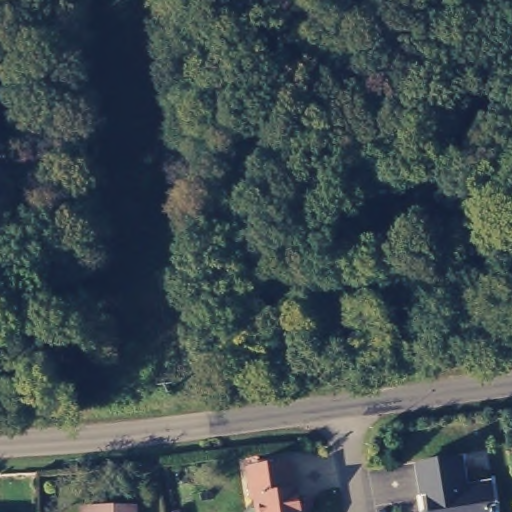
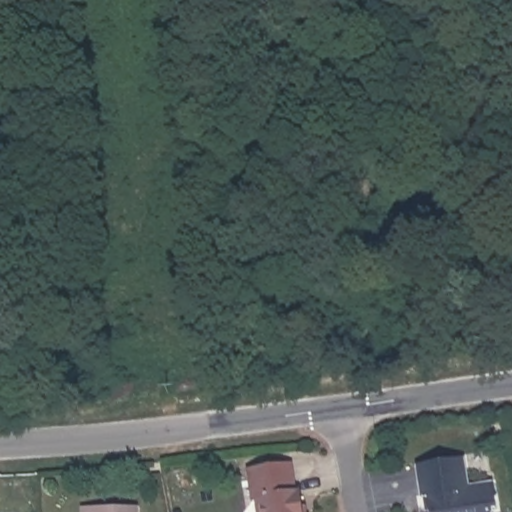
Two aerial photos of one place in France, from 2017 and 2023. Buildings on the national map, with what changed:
unchanged [(427,491),(421,492),(417,462),(462,456),(467,484),(491,481),(494,506),(487,509),(487,512),(431,512),(427,491)]
unchanged [(255,509),(249,509),(246,484),(289,477),(292,501),(295,501),(297,512),(255,512),(255,509)]

